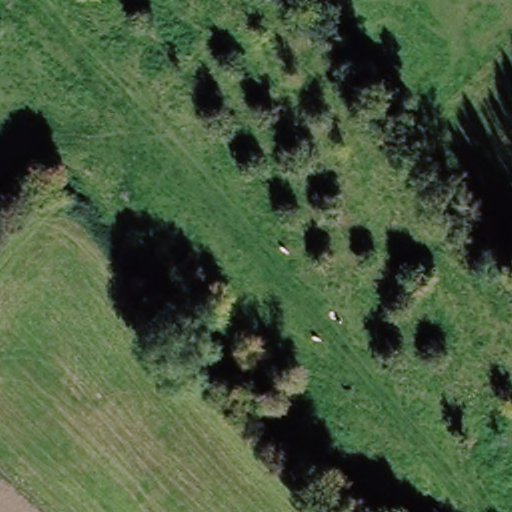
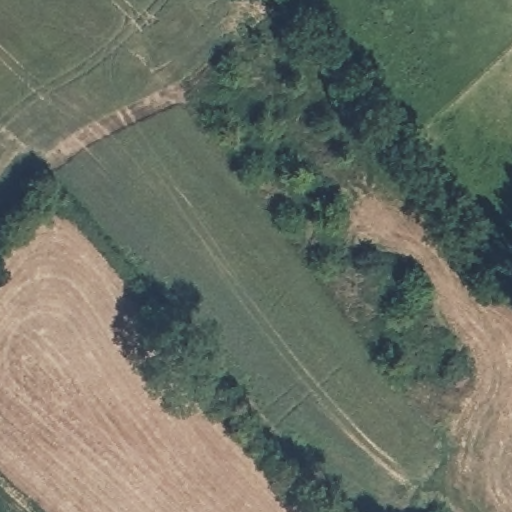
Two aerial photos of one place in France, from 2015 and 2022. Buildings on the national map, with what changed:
[]

